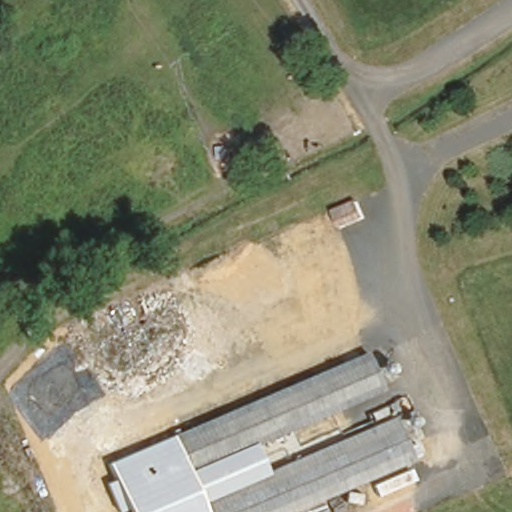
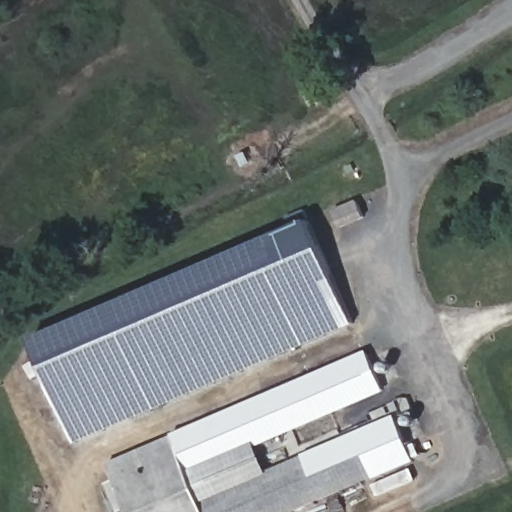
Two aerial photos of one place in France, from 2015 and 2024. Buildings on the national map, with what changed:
new [(77,444),(32,338),(290,227),(286,217),(305,209),(308,219),(353,324),(77,444)]
unchanged [(381,391),(259,446),(194,475),(177,440),(368,354),(381,391)]
unchanged [(395,418),(413,462),(298,512),(211,512),(206,500),(395,418)]
unchanged [(211,512),(128,512),(126,509),(118,511),(106,483),(115,481),(109,462),(177,440),(194,475),(259,446),(269,473),(206,500),(211,512)]

